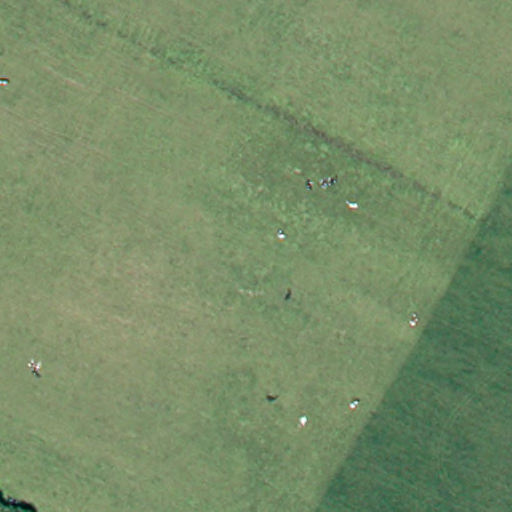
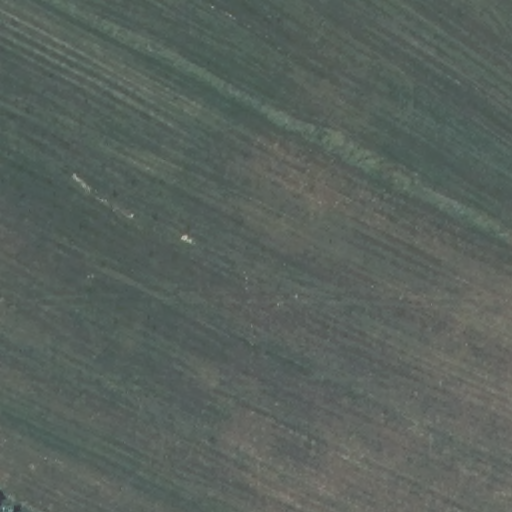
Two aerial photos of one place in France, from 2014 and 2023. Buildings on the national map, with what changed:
[]

